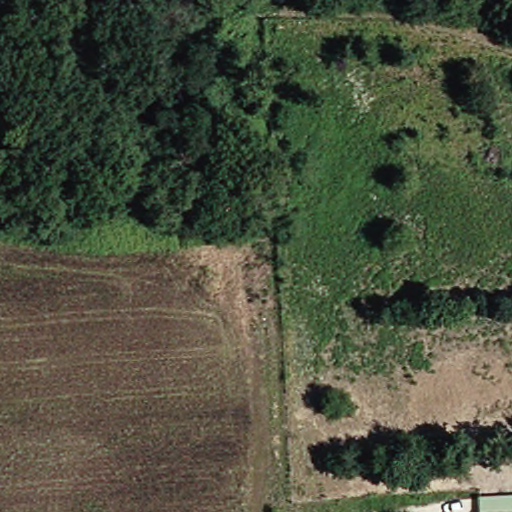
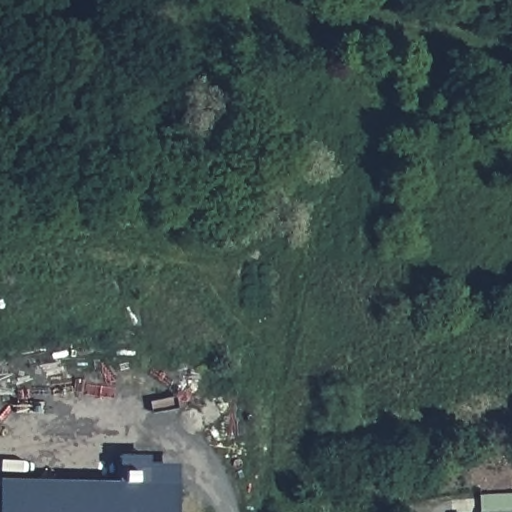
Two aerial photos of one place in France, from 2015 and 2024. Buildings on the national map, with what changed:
new [(186,488),(185,512),(7,512),(8,483),(186,488)]

